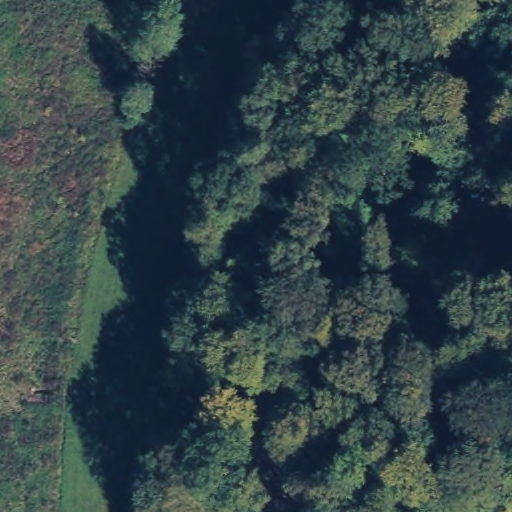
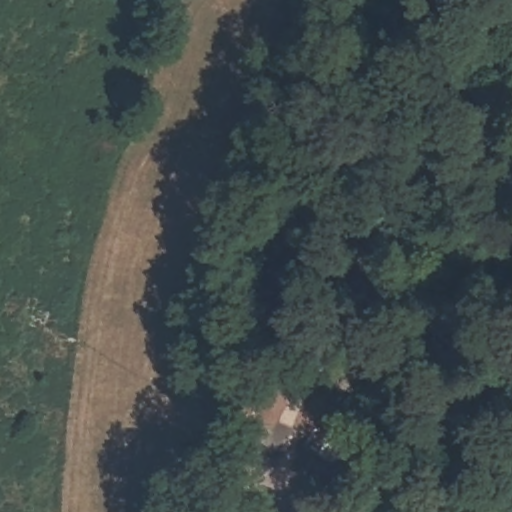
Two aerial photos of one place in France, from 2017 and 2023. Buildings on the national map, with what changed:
unchanged [(254,512),(224,512),(227,486),(255,493),(254,512)]

